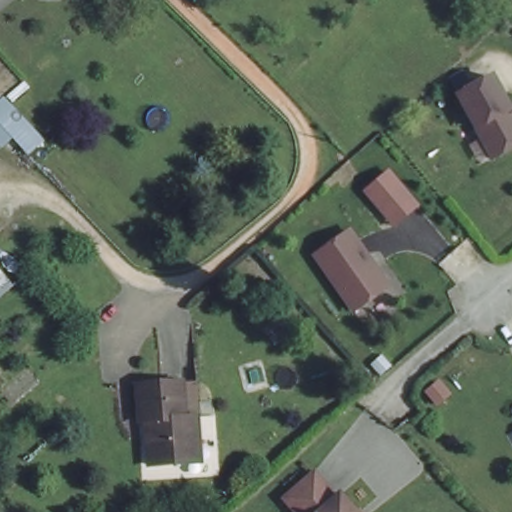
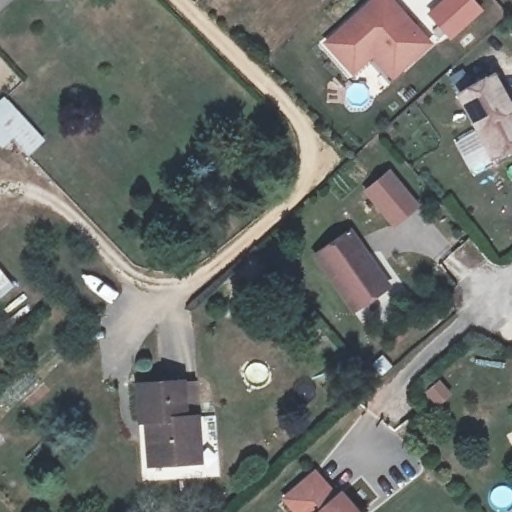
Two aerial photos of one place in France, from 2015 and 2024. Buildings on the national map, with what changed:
new [(431,38),(392,76),(371,58),(354,74),(319,37),(359,0),(394,0),(431,38)]
new [(442,0),(473,0),(483,10),(450,40),(427,14),(442,0)]
unchanged [(498,90),(506,105),(510,101),(512,104),(512,112),(511,113),(512,115),(512,141),(491,154),(472,120),(455,92),(488,72),(498,90)]
unchanged [(30,156),(0,125),(0,98),(3,95),(46,140),(30,156)]
unchanged [(419,206),(392,228),(363,191),(390,169),(419,206)]
unchanged [(370,254),(369,255),(388,282),(355,305),(316,251),(350,226),(370,254)]
unchanged [(0,298),(0,269),(15,287),(0,298)]
unchanged [(187,463),(145,464),(144,438),(150,438),(149,418),(138,418),(138,382),(183,382),(185,417),(198,417),(199,440),(200,463),(187,463)]
unchanged [(310,473),(333,496),(336,492),(357,512),(292,512),(279,499),(310,473)]

